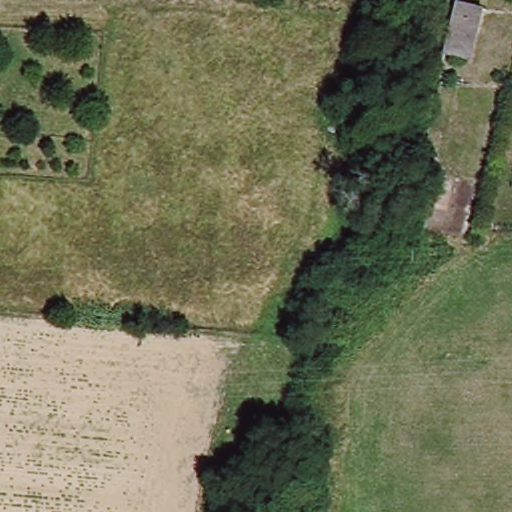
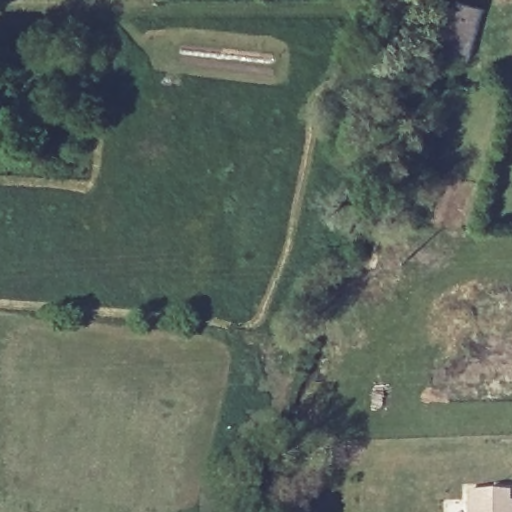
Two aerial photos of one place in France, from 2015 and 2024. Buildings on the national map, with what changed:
unchanged [(446,47),(456,0),(486,7),(477,53),(446,47)]
new [(510,502),(512,503),(512,512),(470,512),(470,492),(510,492),(510,502)]

